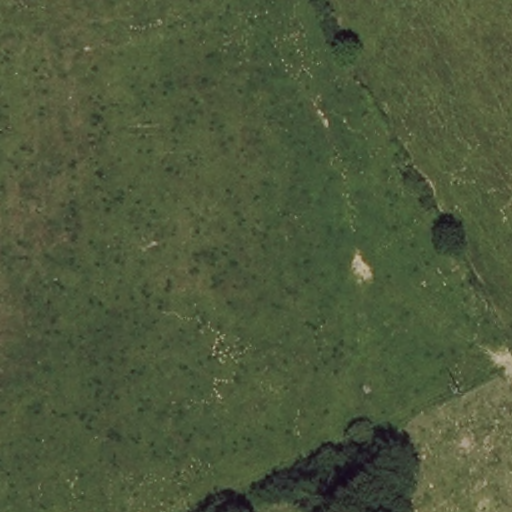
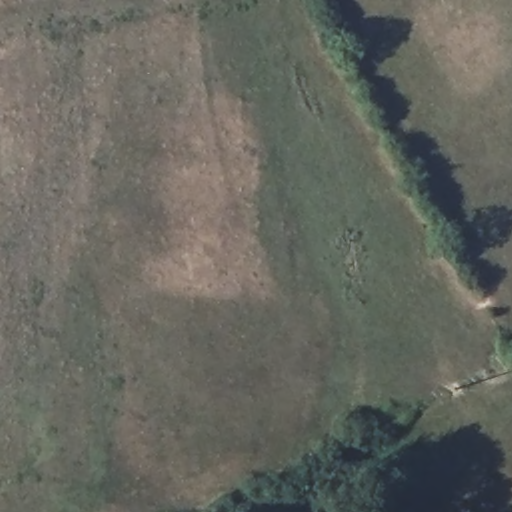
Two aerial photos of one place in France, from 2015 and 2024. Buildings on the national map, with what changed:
[]

